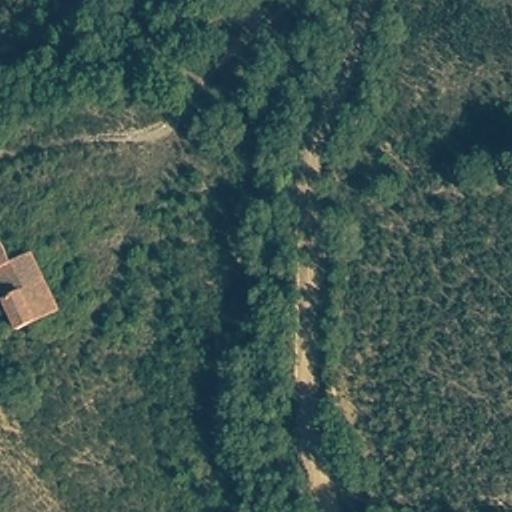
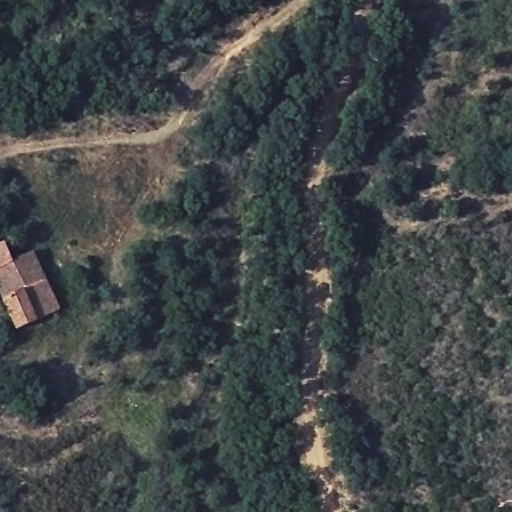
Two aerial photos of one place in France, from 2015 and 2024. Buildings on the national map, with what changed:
unchanged [(32,253),(59,312),(18,328),(0,290),(0,245),(4,244),(11,261),(32,253)]

